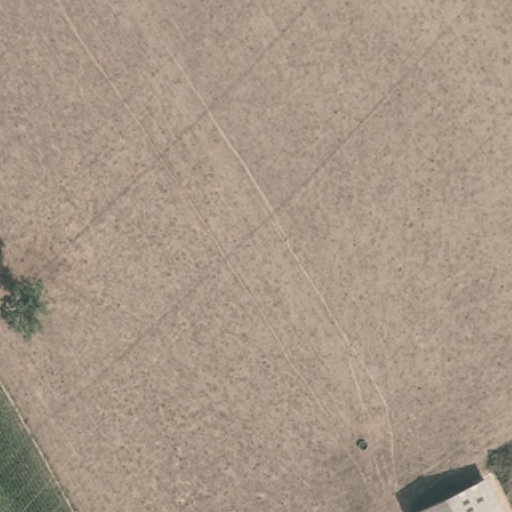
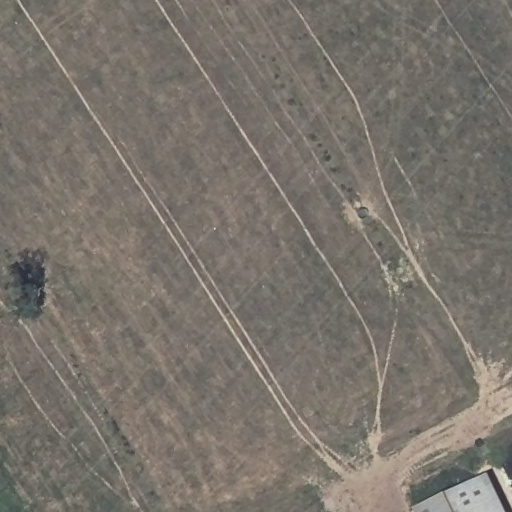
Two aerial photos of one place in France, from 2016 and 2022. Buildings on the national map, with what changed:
unchanged [(480,475),(499,512),(426,512),(422,504),(451,490),(480,475)]
unchanged [(426,512),(413,512),(413,511),(422,504),(426,512)]

